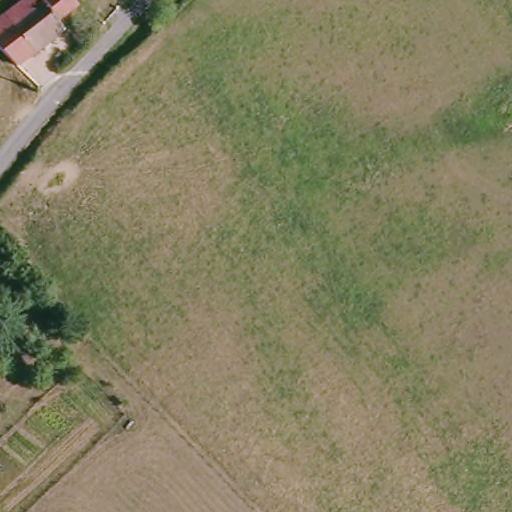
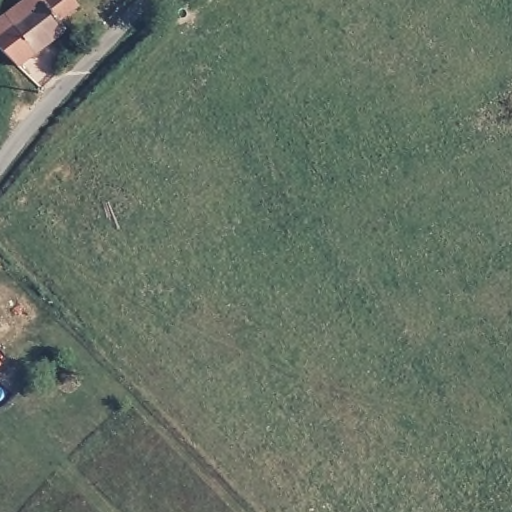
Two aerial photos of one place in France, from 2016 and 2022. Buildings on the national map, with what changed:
unchanged [(72,0),(79,11),(57,25),(65,36),(35,57),(19,70),(0,50),(0,20),(26,0),(72,0)]

